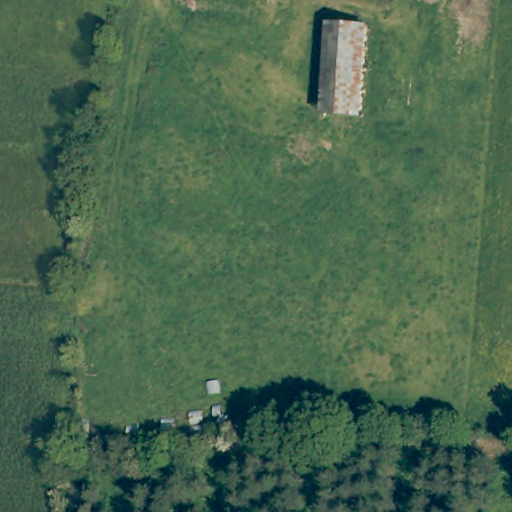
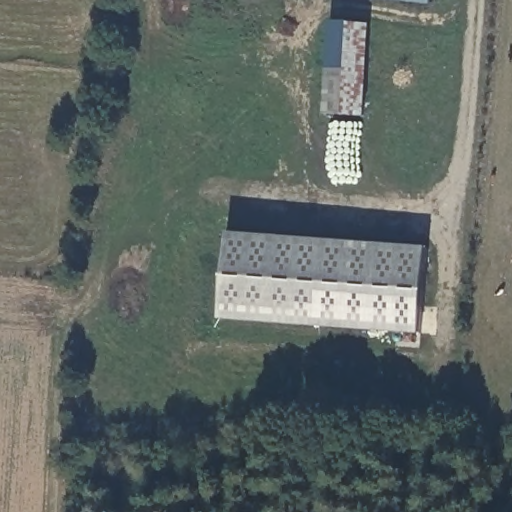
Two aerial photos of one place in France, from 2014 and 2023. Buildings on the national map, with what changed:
new [(407,0),(432,0),(432,4),(407,0)]
unchanged [(357,115),(322,112),(328,22),(364,25),(357,115)]
new [(426,249),(418,335),(220,320),(228,234),(426,249)]

